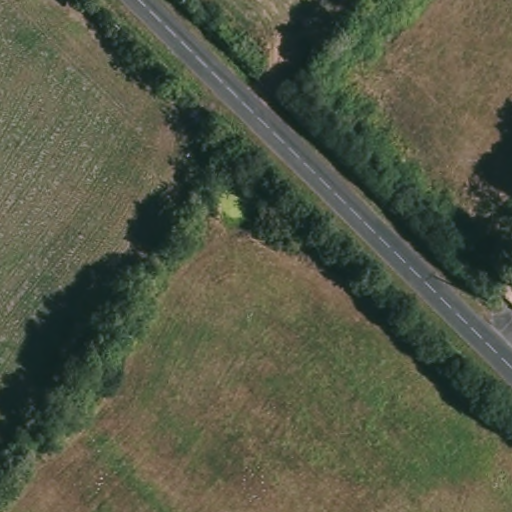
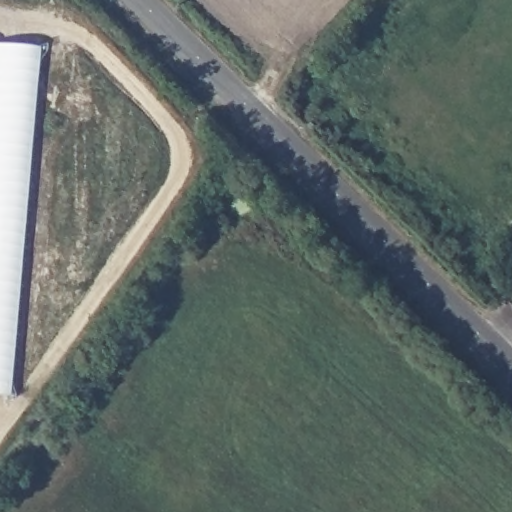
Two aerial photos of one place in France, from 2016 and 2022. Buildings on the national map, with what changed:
new [(7,397),(0,397),(0,43),(38,46),(7,397)]

